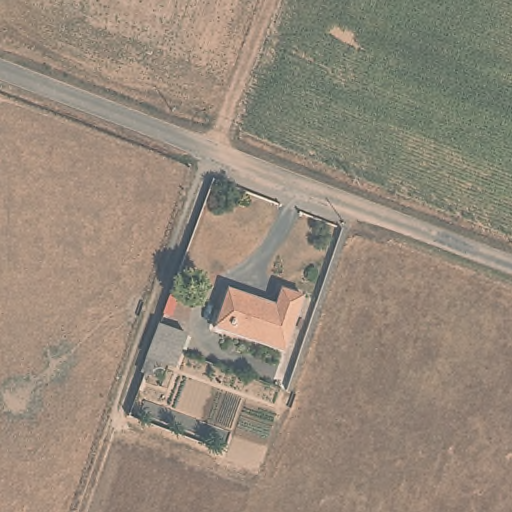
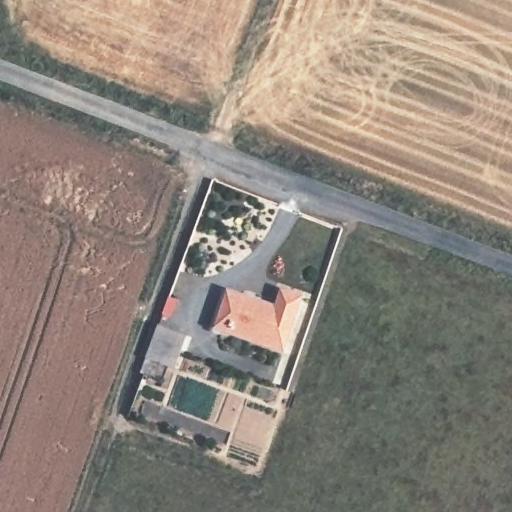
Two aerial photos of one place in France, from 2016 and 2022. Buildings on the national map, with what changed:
unchanged [(214,327),(227,292),(275,309),(281,291),(300,298),(281,351),(214,327)]
unchanged [(153,360),(147,375),(138,371),(150,341),(156,325),(184,335),(178,352),(172,367),(153,360)]

